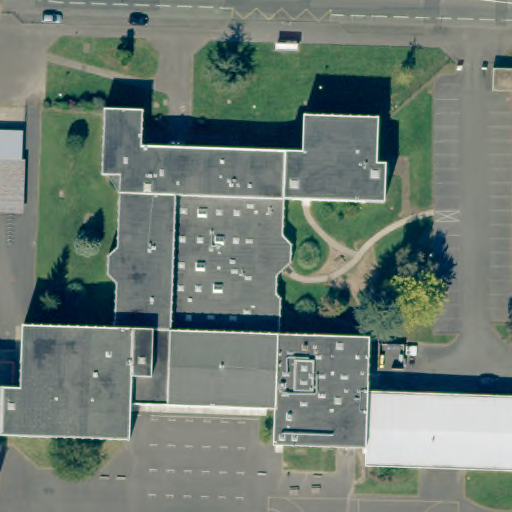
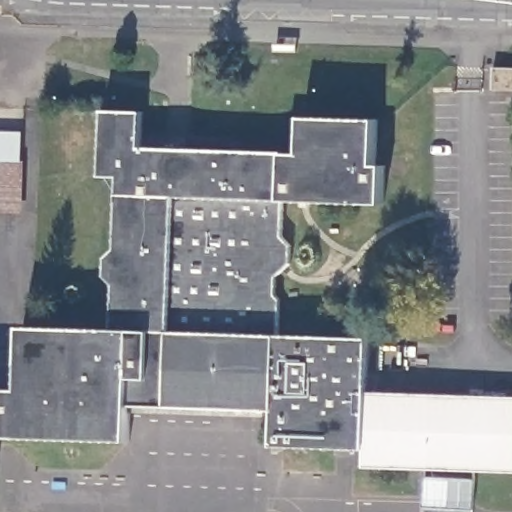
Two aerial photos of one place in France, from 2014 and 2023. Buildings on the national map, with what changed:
unchanged [(492,60),(512,61),(512,83),(490,83),(492,60)]
unchanged [(142,142),(225,145),(303,147),(305,111),(348,113),(380,114),(378,159),(387,159),(386,198),(287,194),(286,230),(292,240),(292,258),(277,272),(277,290),(282,293),(281,328),(370,332),(368,385),(512,391),(512,463),(366,458),(367,442),(275,438),(277,402),(131,397),(130,432),(0,427),(0,381),(21,382),(23,320),(116,323),(117,279),(109,270),(109,252),(119,244),(120,172),(103,171),(105,105),(144,106),(142,142)]
unchanged [(19,127),(19,155),(22,155),(19,210),(0,209),(0,126),(19,127)]

